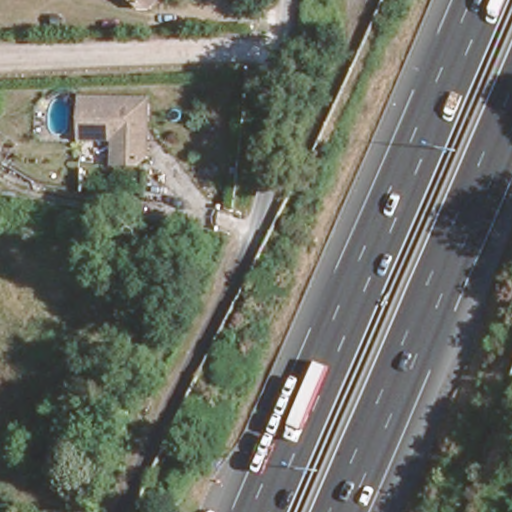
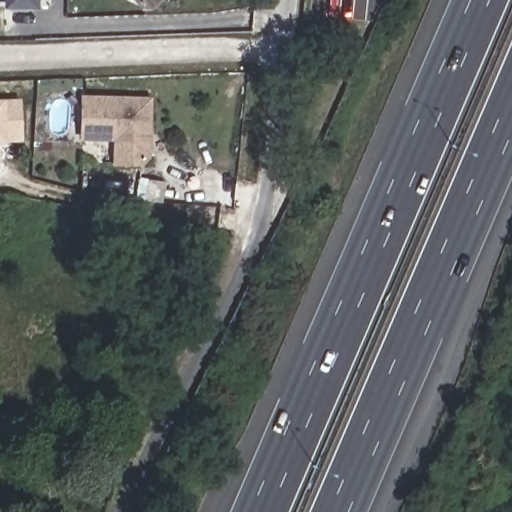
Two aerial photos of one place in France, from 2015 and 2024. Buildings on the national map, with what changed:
new [(38,10),(5,10),(5,0),(39,0),(38,10)]
unchanged [(151,4),(148,3),(145,3),(142,0),(155,0),(151,4)]
unchanged [(155,129),(151,132),(150,138),(154,142),(151,160),(143,166),(119,163),(122,138),(88,133),(93,94),(159,102),(155,129)]
new [(7,143),(0,143),(0,100),(4,100),(21,99),(22,142),(7,143)]

